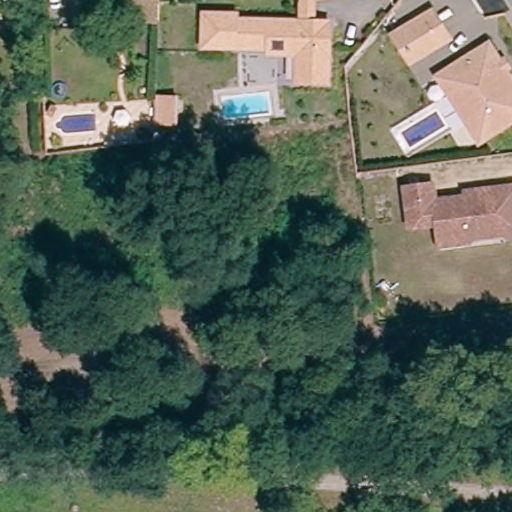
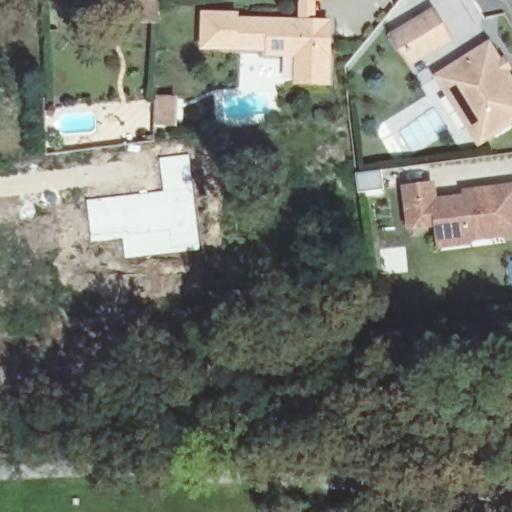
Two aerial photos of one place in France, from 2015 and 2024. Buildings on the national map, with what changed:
unchanged [(135,0),(164,0),(164,5),(164,14),(164,22),(140,22),(135,22),(135,6),(135,0)]
unchanged [(313,25),(297,25),(298,0),(313,0),(313,25)]
unchanged [(405,55),(394,36),(432,12),(449,39),(424,54),(410,62),(405,55)]
unchanged [(328,25),(327,87),(296,86),(297,59),(267,58),(267,53),(201,53),(202,20),(234,20),(234,25),(297,25),(313,25),(328,25)]
unchanged [(490,43),(501,61),(505,58),(510,66),(507,69),(512,77),(512,123),(481,143),(469,124),(452,97),(439,77),(490,43)]
unchanged [(193,130),(173,130),(172,105),(192,105),(193,130)]
new [(125,259),(123,237),(91,242),(86,199),(163,191),(158,158),(190,155),(200,251),(125,259)]
unchanged [(438,246),(435,222),(408,226),(403,186),(431,183),(433,200),(464,195),(463,191),(472,189),(512,184),(512,235),(506,236),(461,240),(460,242),(438,246)]

